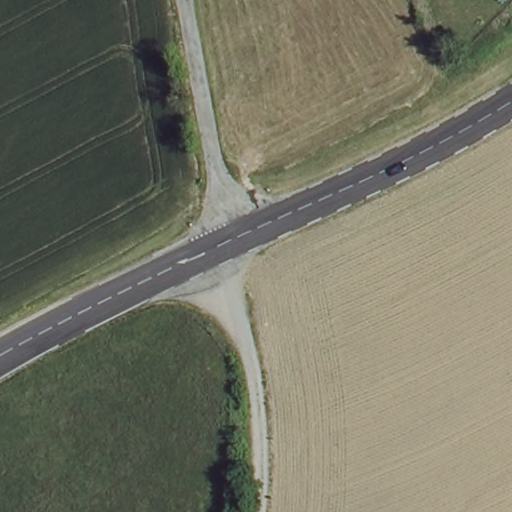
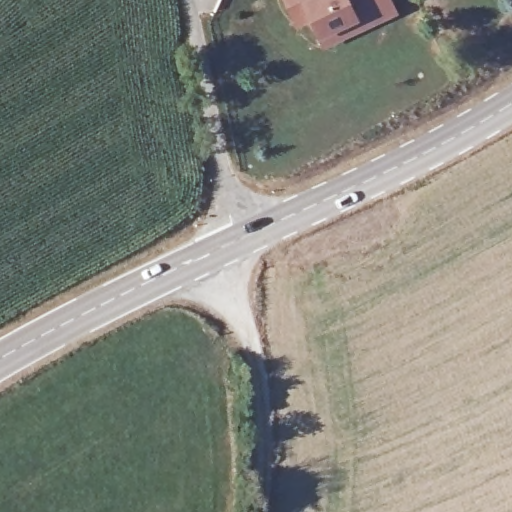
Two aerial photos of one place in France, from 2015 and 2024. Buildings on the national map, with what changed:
new [(325,37),(316,21),(302,29),(295,14),(287,0),(392,0),(399,12),(381,21),(346,40),(330,48),(325,37)]

